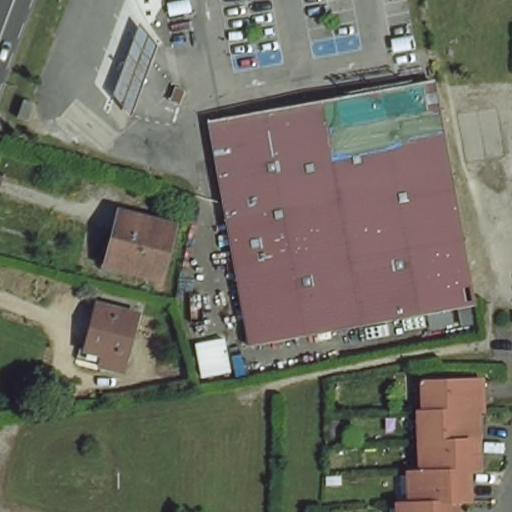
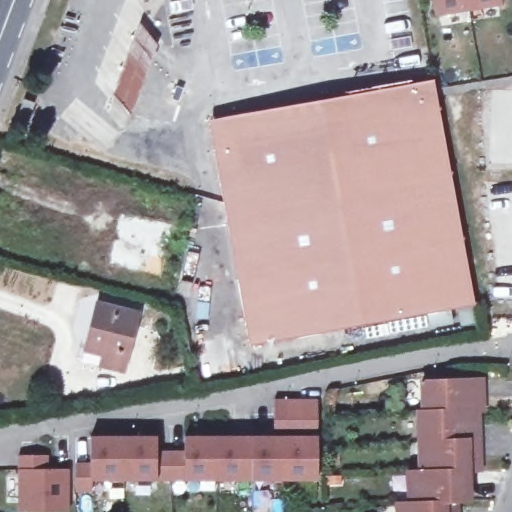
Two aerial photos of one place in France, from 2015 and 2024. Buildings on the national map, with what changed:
new [(435,17),(432,0),(499,0),(500,7),(435,17)]
unchanged [(114,93),(140,22),(157,46),(131,116),(114,93)]
unchanged [(271,137),(266,112),(433,82),(475,304),(250,345),(213,148),(271,137)]
unchanged [(209,123),(266,112),(271,137),(213,148),(209,123)]
unchanged [(162,278),(108,265),(121,212),(175,225),(162,278)]
unchanged [(101,365),(103,356),(85,351),(97,305),(137,315),(123,371),(101,365)]
unchanged [(391,504),(403,504),(403,492),(402,473),(415,472),(413,455),(413,442),(413,430),(412,412),(417,412),(416,395),(416,382),(422,382),(432,382),(476,380),(477,401),(477,410),(473,411),(473,420),(474,441),(475,460),(475,470),(470,471),(464,471),(464,481),(465,502),(452,502),(452,512),(392,512),(391,504)]
new [(75,464),(89,464),(90,437),(157,437),(158,451),(182,451),(182,437),(273,437),(273,400),(317,400),(317,482),(91,481),(91,495),(75,493),(75,464)]
new [(17,457),(47,457),(46,471),(68,471),(68,512),(17,512),(17,457)]

